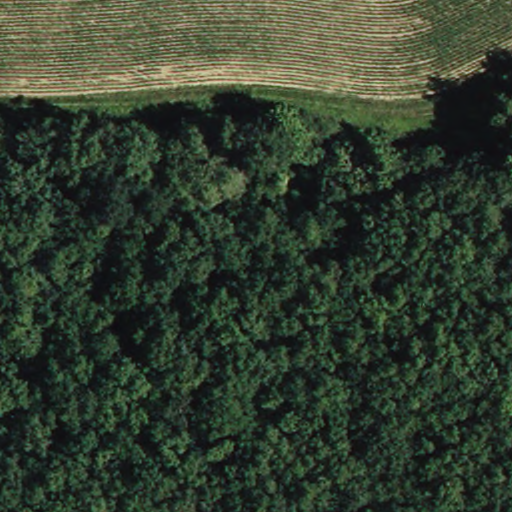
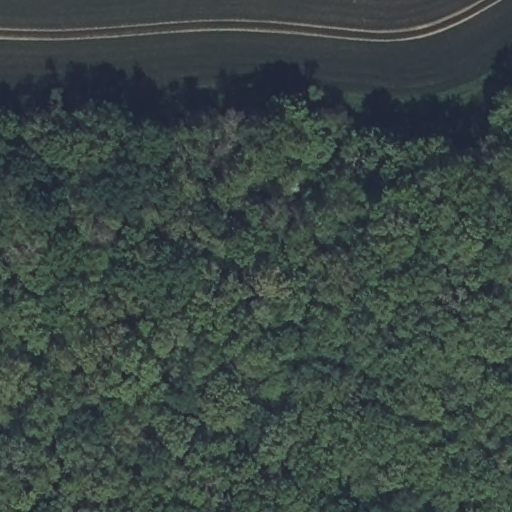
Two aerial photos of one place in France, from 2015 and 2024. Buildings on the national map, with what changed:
[]

